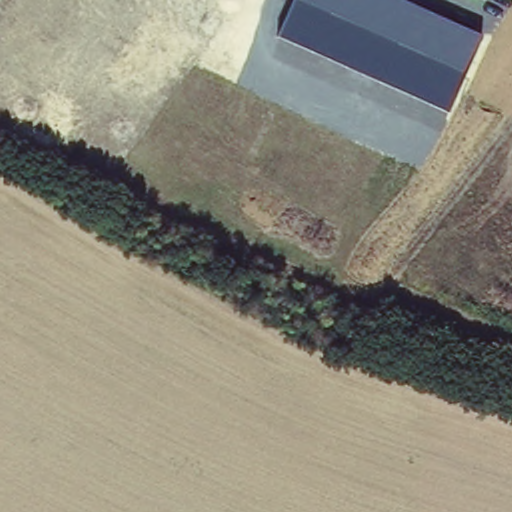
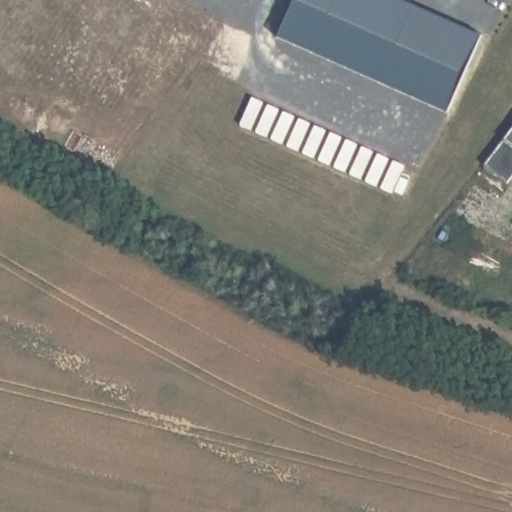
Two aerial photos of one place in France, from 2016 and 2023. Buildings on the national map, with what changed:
unchanged [(275,35),(291,0),(404,0),(483,35),(448,113),(275,35)]
new [(507,182),(484,164),(512,126),(512,175),(507,182)]

